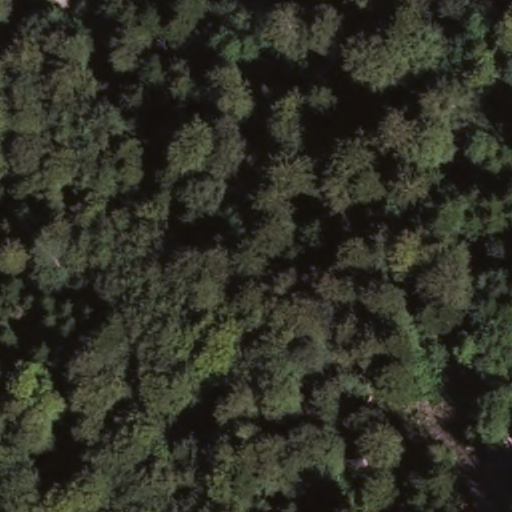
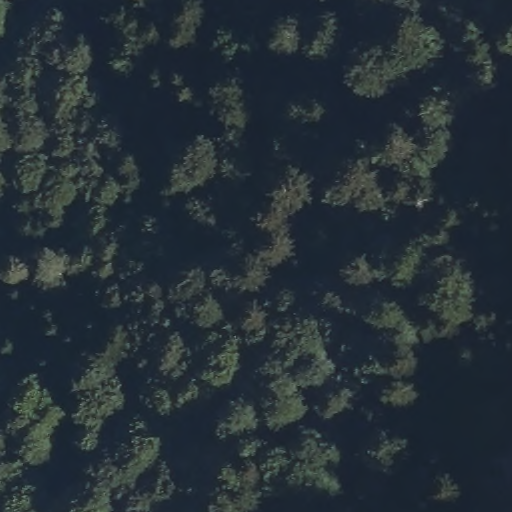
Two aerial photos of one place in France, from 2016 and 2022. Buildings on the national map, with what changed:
[]

